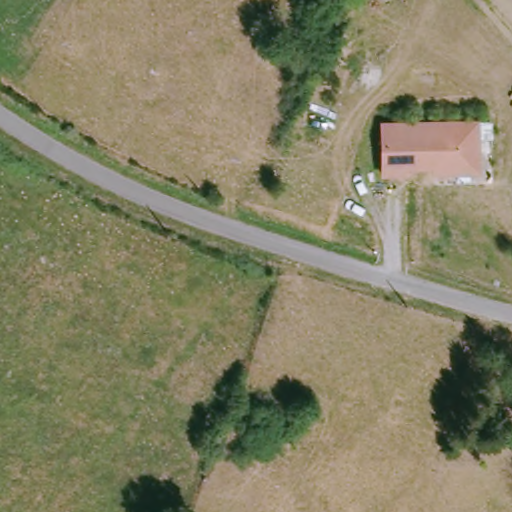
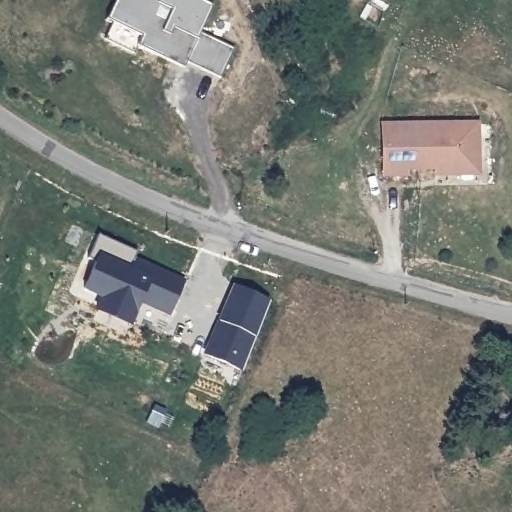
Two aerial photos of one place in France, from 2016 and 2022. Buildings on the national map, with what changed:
new [(137,49),(134,57),(103,44),(110,28),(103,25),(114,0),(194,0),(210,6),(199,34),(233,48),(221,77),(186,63),(185,65),(184,69),(171,64),(137,49)]
unchanged [(435,168),(405,168),(405,175),(383,175),(382,125),(477,123),(478,167),(435,168)]
new [(153,273),(184,285),(170,319),(140,307),(136,317),(82,296),(93,269),(85,266),(95,241),(135,257),(130,270),(151,278),(153,273)]
new [(207,356),(228,303),(235,286),(270,301),(263,317),(242,371),(207,356)]
new [(131,331),(97,318),(102,304),(136,317),(131,331)]
new [(158,410),(170,416),(164,430),(152,425),(158,410)]

